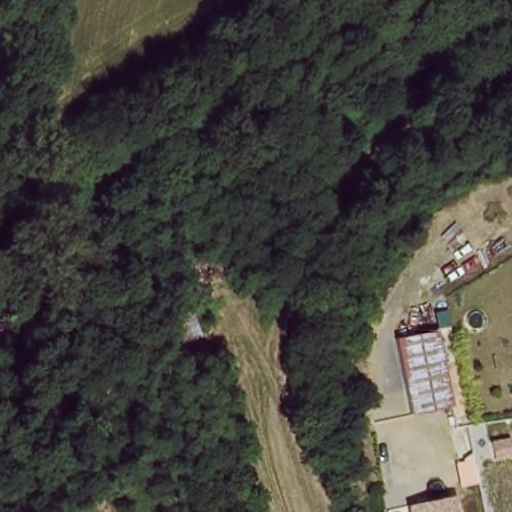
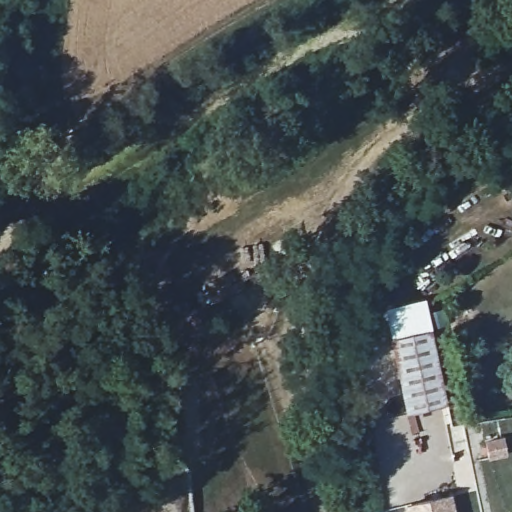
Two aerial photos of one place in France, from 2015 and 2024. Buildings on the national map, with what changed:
unchanged [(168,356),(158,325),(197,307),(208,336),(168,356)]
unchanged [(442,407),(438,407),(402,415),(387,340),(422,332),(427,331),(442,407)]
unchanged [(449,512),(405,512),(405,507),(447,499),(449,512)]

